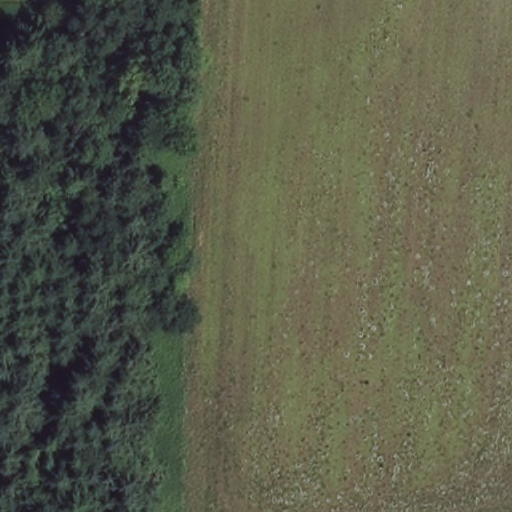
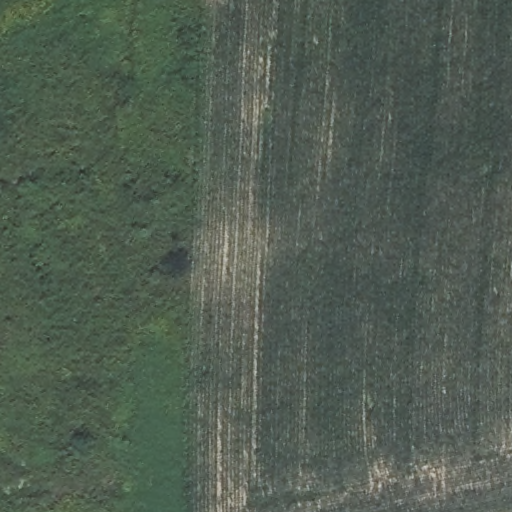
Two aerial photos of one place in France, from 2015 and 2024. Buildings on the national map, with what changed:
[]

